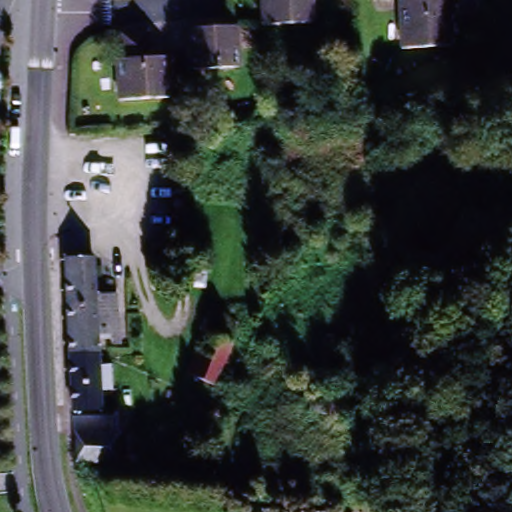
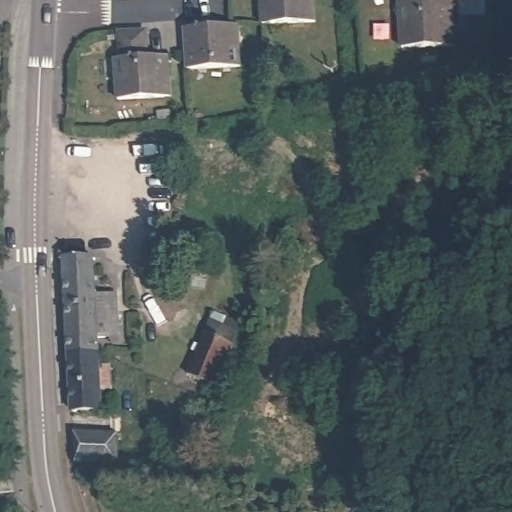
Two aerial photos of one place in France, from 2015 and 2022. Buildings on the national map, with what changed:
unchanged [(263,0),(313,0),(314,20),(264,23),(263,0)]
unchanged [(449,29),(399,33),(397,0),(447,0),(449,29)]
unchanged [(245,62),(194,65),(193,50),(191,23),(238,20),(243,20),(245,62)]
unchanged [(166,96),(114,100),(112,60),(118,60),(116,33),(141,31),(142,31),(143,57),(163,56),(166,96)]
unchanged [(103,386),(90,386),(91,407),(63,408),(61,348),(56,260),(84,259),(86,294),(108,293),(109,343),(103,343),(102,336),(88,336),(88,347),(89,362),(101,361),(103,386)]
unchanged [(211,383),(184,372),(201,332),(209,313),(234,323),(226,342),(228,343),(211,383)]
unchanged [(69,431),(113,433),(113,462),(70,460),(69,431)]

